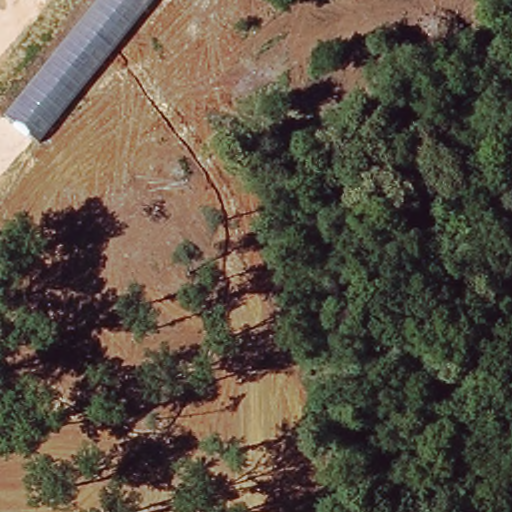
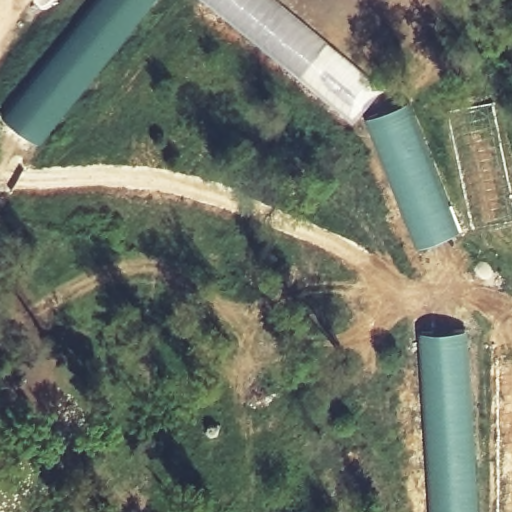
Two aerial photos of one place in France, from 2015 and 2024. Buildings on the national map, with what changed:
unchanged [(39,142),(4,115),(96,0),(155,0),(39,142)]
new [(418,248),(367,119),(411,100),(463,231),(418,248)]
new [(480,512),(427,512),(421,333),(468,329),(480,512)]

